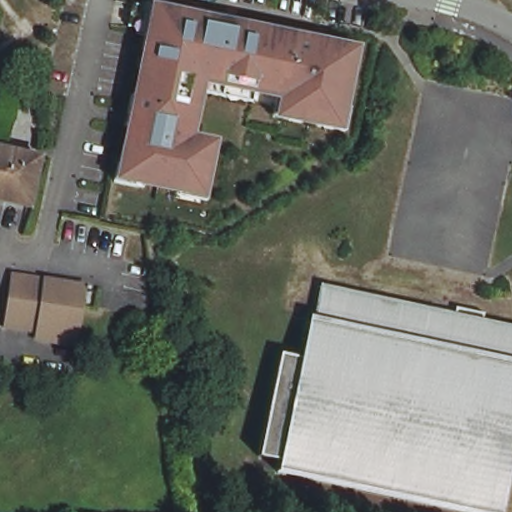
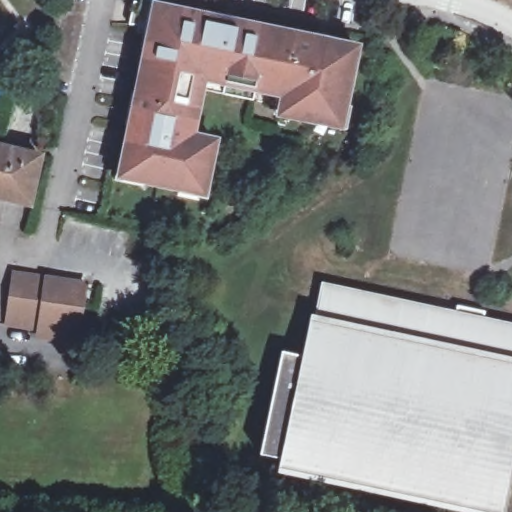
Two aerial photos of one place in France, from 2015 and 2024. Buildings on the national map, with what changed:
unchanged [(175,185),(145,179),(122,174),(123,167),(132,122),(135,111),(138,93),(146,94),(152,65),(145,64),(152,24),(140,23),(130,23),(135,0),(138,0),(145,1),(157,4),(208,15),(207,20),(238,27),(239,21),(317,38),(327,40),(358,46),(344,114),(342,125),(312,119),(282,112),(283,102),(285,93),(257,87),(255,98),(202,88),(195,135),(216,139),(207,184),(205,191),(175,185)]
unchanged [(0,199),(0,149),(39,159),(34,181),(32,194),(29,206),(0,199)]
unchanged [(18,272),(90,279),(82,337),(42,331),(43,325),(25,322),(11,320),(18,272)]
unchanged [(314,327),(328,330),(334,294),(457,315),(458,308),(487,313),(486,320),(512,324),(512,489),(507,512),(436,512),(281,478),(283,468),(262,463),(283,360),(305,365),(314,327)]
unchanged [(512,512),(507,512),(512,489),(512,512)]

